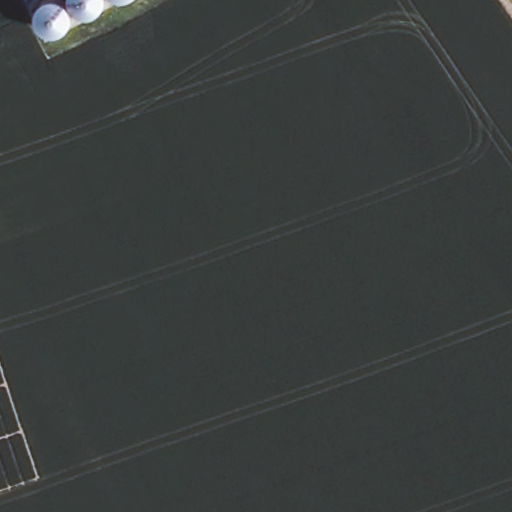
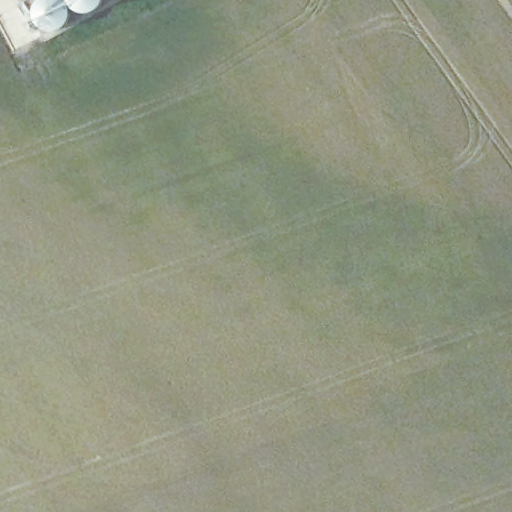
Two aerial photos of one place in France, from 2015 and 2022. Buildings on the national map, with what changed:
unchanged [(72,22),(68,29),(62,32),(55,34),(48,32),(42,29),(38,22),(36,15),(38,9),(42,2),(46,0),(64,0),(68,2),(72,9),(73,15),(72,22)]
unchanged [(107,5),(103,10),(97,15),(90,16),(83,15),(77,10),(73,5),(72,0),(108,0),(107,5)]

